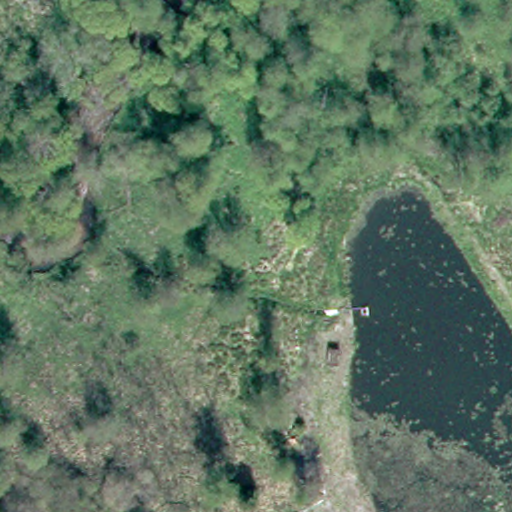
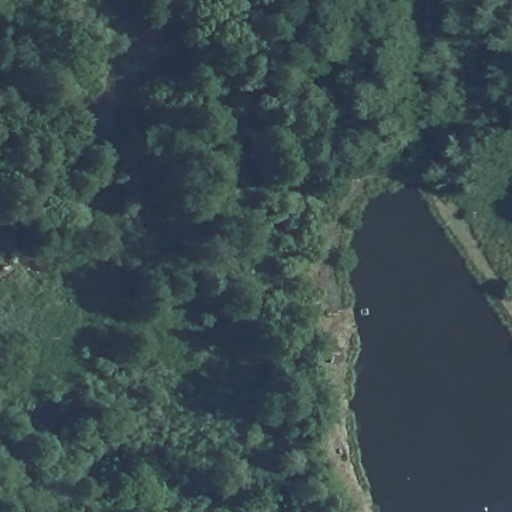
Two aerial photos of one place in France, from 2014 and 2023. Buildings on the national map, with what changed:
unchanged [(332,368),(332,348),(342,348),(343,368),(332,368)]

